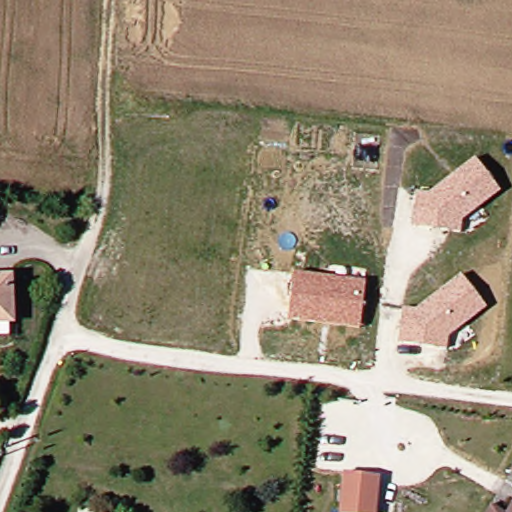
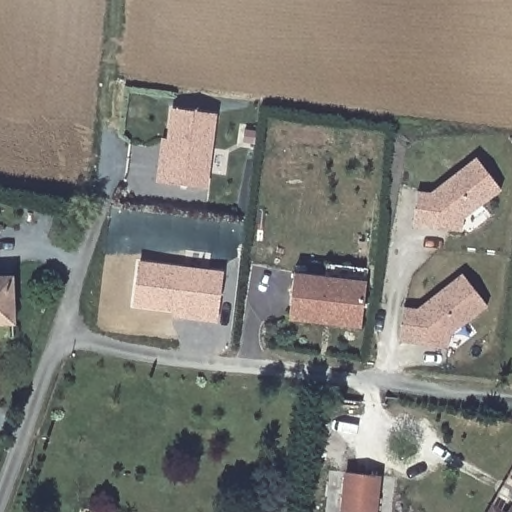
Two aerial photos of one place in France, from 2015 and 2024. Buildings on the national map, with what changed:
new [(170,141),(173,110),(215,116),(206,188),(159,182),(161,165),(164,141),(170,141)]
unchanged [(500,190),(461,219),(461,230),(412,225),(414,191),(428,192),(474,156),(500,190)]
new [(216,322),(173,316),(173,310),(134,305),(139,258),(224,270),(216,322)]
unchanged [(364,278),(358,326),(288,319),(291,272),(364,278)]
unchanged [(485,306),(448,336),(447,346),(399,341),(402,308),(416,308),(460,273),(485,306)]
unchanged [(16,322),(0,323),(0,280),(14,279),(16,322)]
unchanged [(380,475),(377,512),(345,512),(348,472),(380,475)]
unchanged [(509,512),(490,512),(495,504),(504,509),(509,512)]
unchanged [(512,509),(512,512),(510,512),(512,509)]

